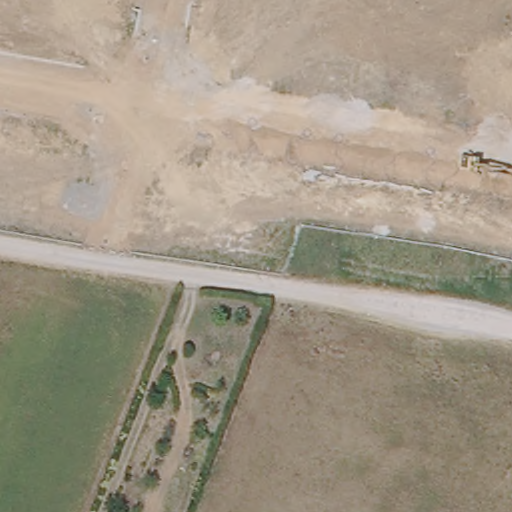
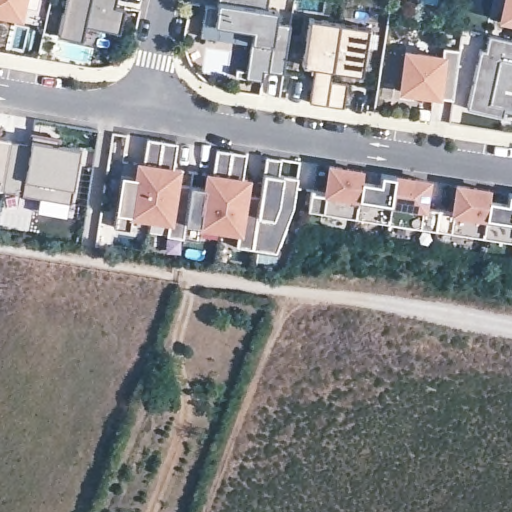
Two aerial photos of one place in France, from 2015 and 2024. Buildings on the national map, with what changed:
new [(0,10),(0,0),(18,0),(15,13),(0,10)]
new [(119,0),(116,8),(126,11),(120,35),(86,27),(83,43),(59,37),(67,0),(119,0)]
new [(221,8),(222,0),(272,0),(271,9),(281,11),(280,24),(295,26),(286,75),(267,72),(266,82),(248,79),(256,31),(206,24),(209,6),(221,8)]
new [(485,15),(488,0),(512,0),(512,21),(485,15)]
new [(350,111),(332,108),(315,105),(320,71),(308,69),(315,21),(345,26),(338,74),(336,84),(354,86),(350,111)]
new [(345,26),(375,31),(367,78),(338,74),(345,26)]
new [(476,48),(481,49),(485,35),(512,41),(512,109),(501,106),(499,116),(463,108),(476,48)]
new [(402,50),(438,55),(439,46),(455,48),(448,99),(433,96),(433,94),(396,89),(402,50)]
new [(27,131),(46,135),(45,145),(52,146),(53,141),(75,145),(65,200),(0,188),(0,168),(5,138),(25,141),(27,131)]
new [(54,136),(52,146),(45,145),(46,135),(54,136)]
new [(116,173),(131,175),(133,161),(138,162),(142,136),(157,139),(145,216),(125,213),(123,227),(107,225),(116,173)]
new [(0,168),(0,137),(5,138),(0,168)]
new [(157,139),(172,141),(168,167),(173,168),(171,182),(186,184),(178,236),(161,234),(164,219),(145,216),(157,139)]
new [(186,184),(201,187),(203,173),(208,174),(211,148),(226,150),(215,227),(196,224),(193,239),(178,236),(186,184)]
new [(226,150),(241,152),(237,178),(242,179),(240,193),(255,195),(246,247),(231,244),(233,230),(215,227),(226,150)]
new [(255,195),(261,156),(276,158),(273,174),(293,177),(288,209),(271,251),(246,247),(255,195)]
new [(306,189),(321,191),(325,166),(358,171),(348,232),(300,225),(306,189)]
new [(350,216),(353,199),(358,171),(362,170),(361,179),(380,182),(381,174),(389,176),(385,201),(382,220),(380,237),(348,232),(350,216)]
new [(389,176),(422,181),(418,206),(433,209),(428,245),(380,237),(389,176)]
new [(433,209),(449,211),(453,186),(485,191),(484,200),(476,252),(428,245),(433,209)]
new [(1,190),(0,190),(0,188),(1,188),(1,190)]
new [(484,200),(503,202),(504,194),(512,194),(512,224),(507,257),(476,252),(484,200)]
new [(512,224),(512,258),(507,257),(512,224)]

